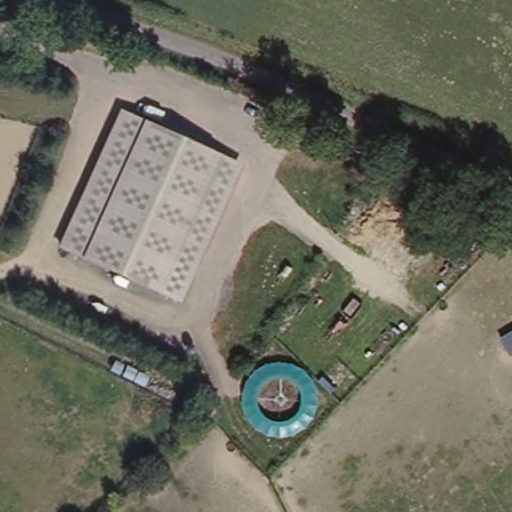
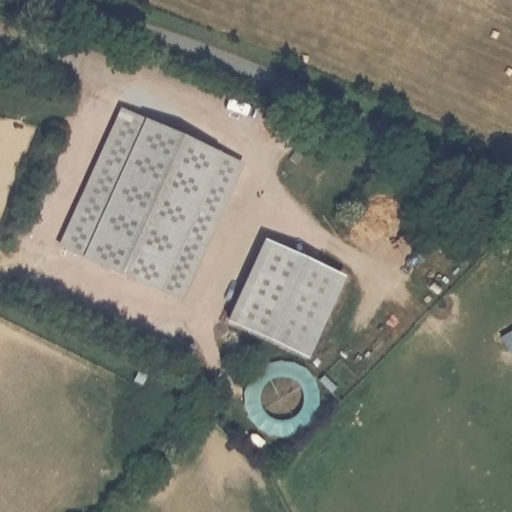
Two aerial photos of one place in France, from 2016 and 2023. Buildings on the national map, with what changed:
unchanged [(245,162),(182,303),(57,251),(120,109),(245,162)]
new [(266,236),(345,272),(308,354),(229,318),(266,236)]
new [(246,391),(247,385),(250,379),(254,373),(258,369),(264,365),(270,362),(276,361),(283,360),(290,360),(295,362),(301,365),(307,369),(311,373),(315,379),(318,385),(320,391),(320,397),(320,404),(318,410),(315,416),(312,422),(307,426),(296,433),(290,435),(283,435),(276,435),(270,433),(264,430),(259,426),(254,422),(250,416),(247,410),(246,404),(245,398),(246,391)]

